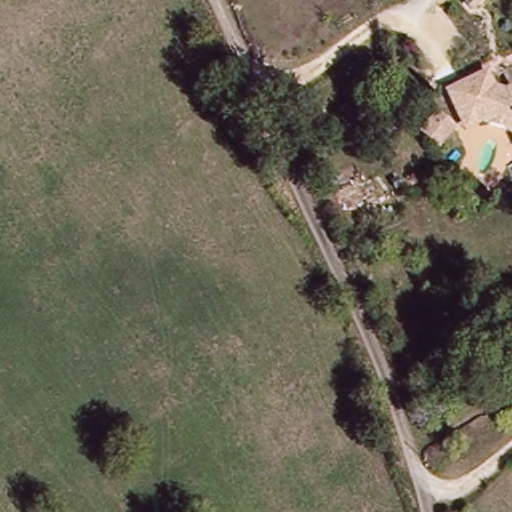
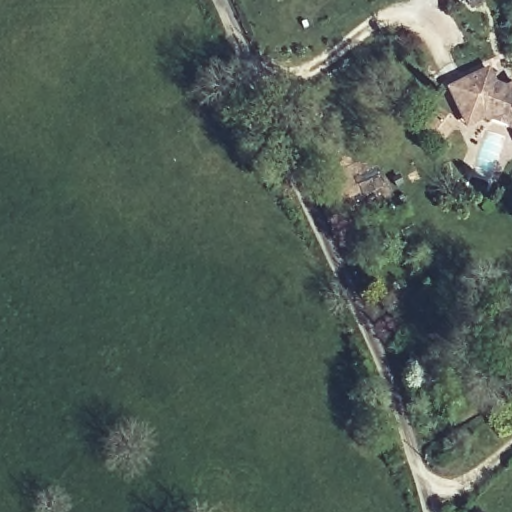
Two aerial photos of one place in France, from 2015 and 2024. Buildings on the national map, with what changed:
unchanged [(465,0),(481,0),(469,7),(465,0)]
unchanged [(488,67),(496,82),(505,87),(512,85),(512,130),(493,124),(486,110),(464,121),(447,89),(488,67)]

